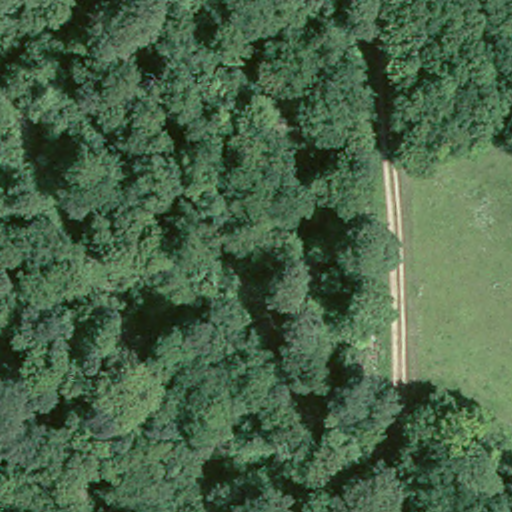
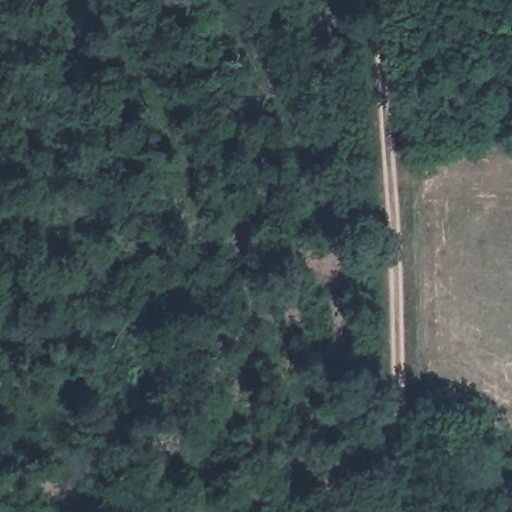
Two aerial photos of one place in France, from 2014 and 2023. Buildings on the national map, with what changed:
[]

